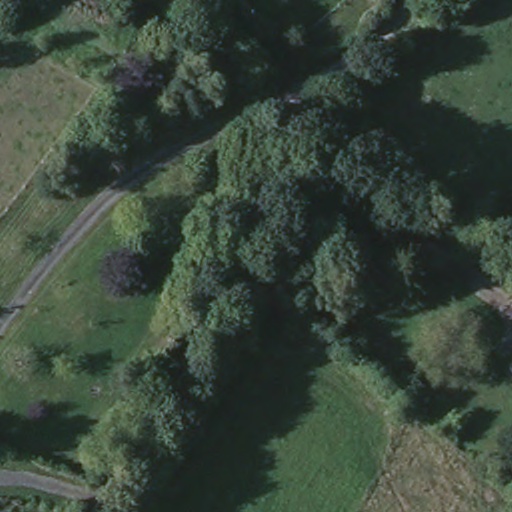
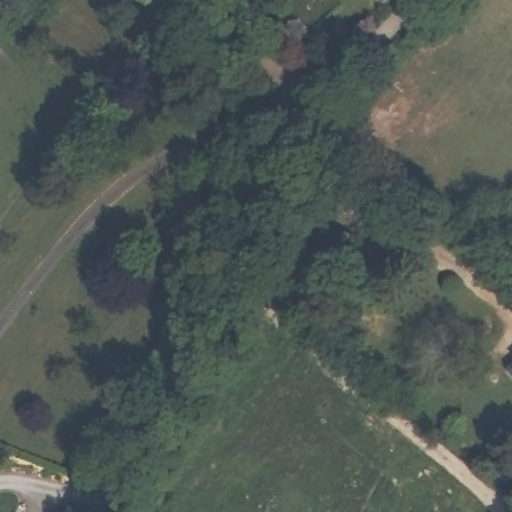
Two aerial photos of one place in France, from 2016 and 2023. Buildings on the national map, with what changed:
unchanged [(377,0),(382,0),(380,2),(377,0)]
unchanged [(340,226),(356,235),(345,260),(326,251),(340,226)]
unchanged [(512,375),(505,367),(512,361),(512,375)]

